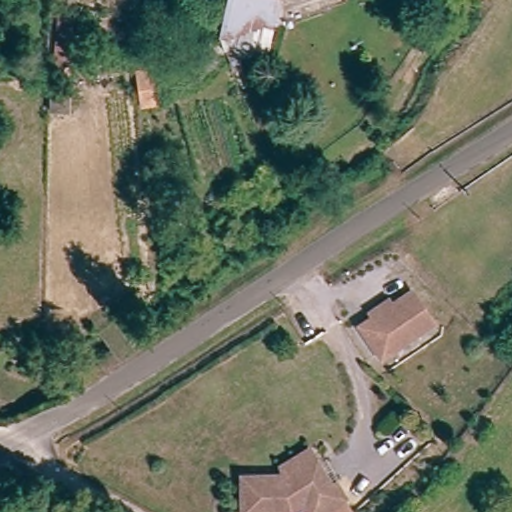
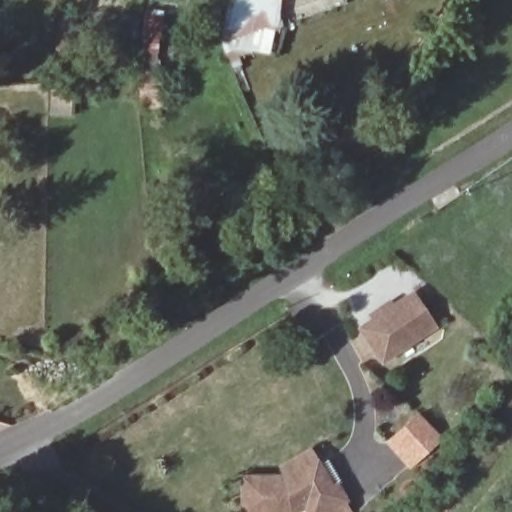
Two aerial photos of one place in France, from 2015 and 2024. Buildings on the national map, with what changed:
unchanged [(280,0),(271,55),(216,49),(227,0),(280,0)]
unchanged [(72,19),(68,78),(55,77),(59,18),(72,19)]
unchanged [(160,106),(143,109),(137,74),(155,72),(160,106)]
unchanged [(71,94),(71,114),(53,114),(53,94),(71,94)]
unchanged [(376,312),(393,300),(396,304),(417,290),(439,324),(387,358),(365,325),(378,317),(376,312)]
new [(443,439),(410,470),(385,444),(418,412),(443,439)]
unchanged [(306,505),(295,512),(281,512),(244,511),(245,473),(289,474),(284,465),(311,449),(319,462),(333,486),(338,483),(347,498),(356,512),(311,512),(306,505)]

